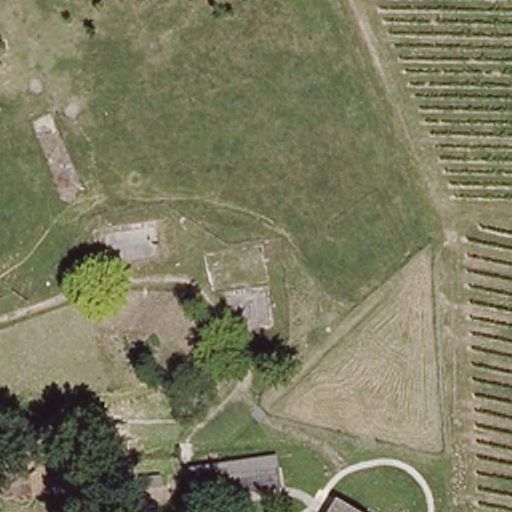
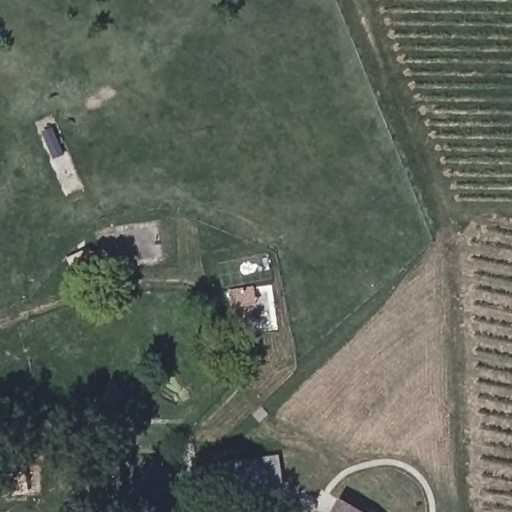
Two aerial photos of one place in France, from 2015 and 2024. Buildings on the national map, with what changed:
unchanged [(265,488),(207,494),(205,466),(262,460),(265,488)]
unchanged [(358,512),(320,512),(329,495),(358,512)]

